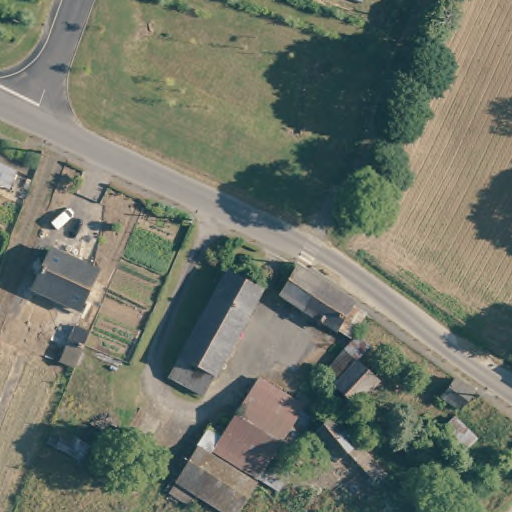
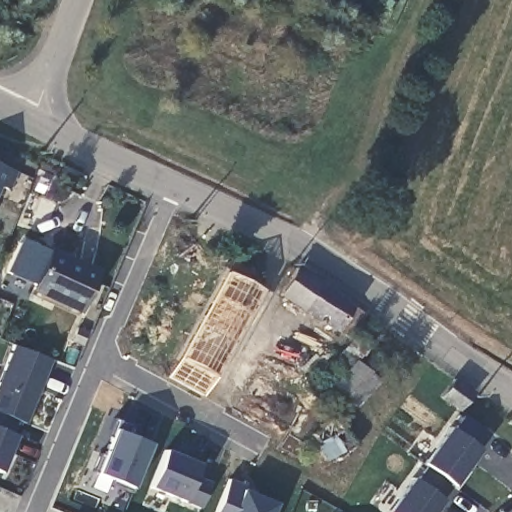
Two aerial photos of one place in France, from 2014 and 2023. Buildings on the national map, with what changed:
unchanged [(14,193),(5,190),(0,201),(0,165),(21,175),(14,193)]
unchanged [(95,264),(79,300),(35,279),(52,243),(95,264)]
unchanged [(332,326),(269,282),(286,254),(309,266),(353,297),(366,307),(346,336),(332,326)]
unchanged [(263,288),(201,399),(165,379),(228,267),(263,288)]
unchanged [(79,322),(92,328),(76,364),(64,358),(79,322)]
unchanged [(384,371),(382,376),(360,403),(328,380),(322,376),(346,343),(384,371)]
new [(12,435),(15,435),(0,472),(0,377),(13,345),(53,360),(25,424),(18,422),(12,435)]
unchanged [(436,387),(448,371),(474,390),(462,406),(450,398),(436,387)]
unchanged [(259,378),(303,406),(300,412),(313,419),(293,455),(278,446),(291,424),(249,397),(259,378)]
demolished [(472,432),(465,418),(481,411),(487,424),(472,432)]
new [(434,512),(387,512),(449,427),(454,431),(464,418),(486,432),(476,447),(481,450),(434,512)]
unchanged [(369,454),(349,472),(319,440),(338,420),(369,454)]
demolished [(213,459),(262,485),(247,512),(226,512),(178,487),(209,429),(224,437),(215,453),(213,459)]
new [(151,444),(134,489),(97,474),(117,430),(151,444)]
new [(149,487),(165,451),(200,465),(194,475),(211,483),(199,508),(184,502),(149,487)]
new [(228,480),(255,491),(254,496),(275,504),(272,512),(215,512),(228,480)]

